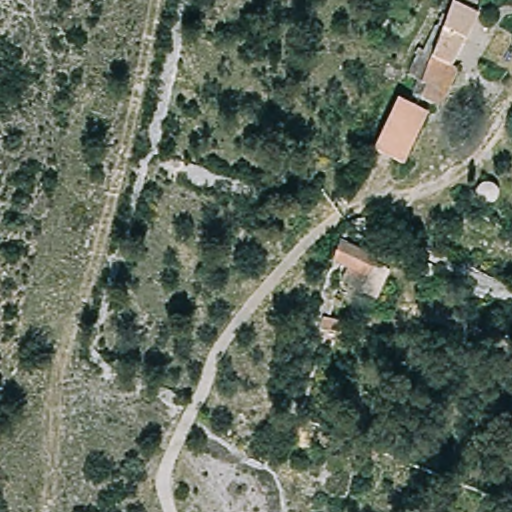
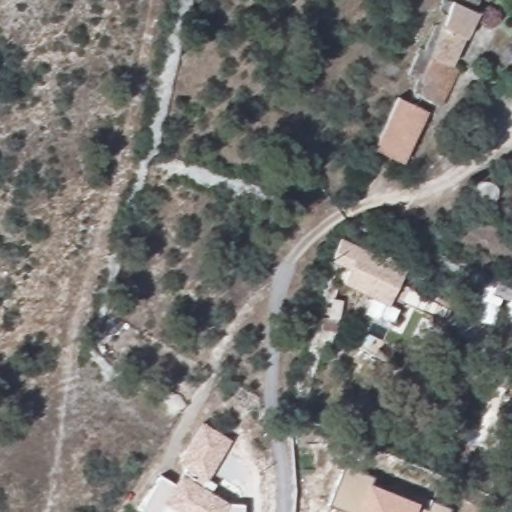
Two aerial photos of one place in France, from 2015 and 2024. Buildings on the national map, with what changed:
unchanged [(445,0),(458,0),(473,7),(453,60),(428,50),(445,0)]
unchanged [(428,50),(453,60),(462,64),(440,102),(413,92),(428,50)]
unchanged [(422,106),(397,159),(392,156),(368,144),(393,92),(410,100),(422,106)]
unchanged [(332,261),(336,243),(337,241),(377,257),(373,266),(387,272),(380,289),(346,277),(349,272),(331,264),(332,261)]
unchanged [(325,311),(342,317),(338,332),(321,326),(325,311)]
new [(207,480),(215,486),(210,492),(227,502),(227,503),(243,505),(243,512),(177,512),(166,505),(162,512),(139,512),(137,511),(159,476),(175,484),(185,468),(177,462),(202,423),(230,442),(207,480)]
new [(371,484),(417,503),(415,507),(425,511),(430,500),(450,508),(449,512),(341,512),(326,506),(343,465),(373,477),(371,484)]

